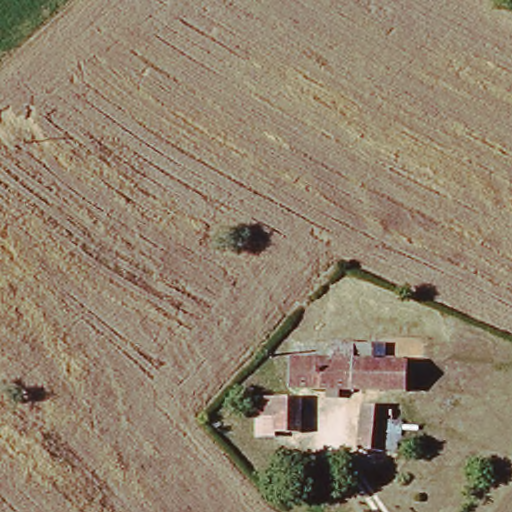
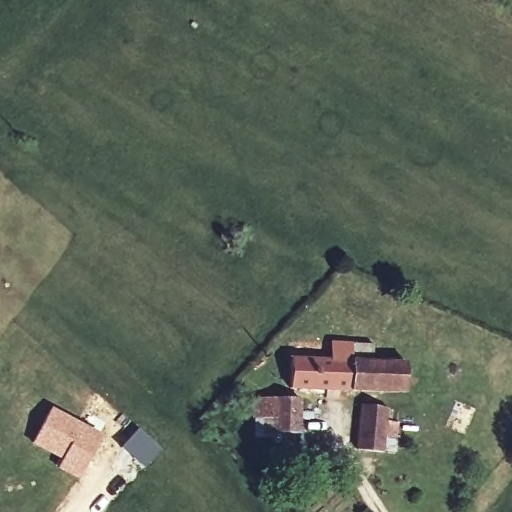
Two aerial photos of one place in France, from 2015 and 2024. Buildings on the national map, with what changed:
unchanged [(406,396),(293,390),(294,361),(334,364),(334,347),(409,352),(406,396)]
unchanged [(279,436),(274,436),(275,421),(255,420),(256,399),(302,402),(300,437),(299,453),(278,450),(279,436)]
unchanged [(359,451),(364,408),(401,413),(396,455),(359,451)]
new [(51,409),(101,435),(78,480),(58,470),(62,459),(32,445),(51,409)]
unchanged [(308,468),(318,481),(305,492),(294,479),(308,468)]

